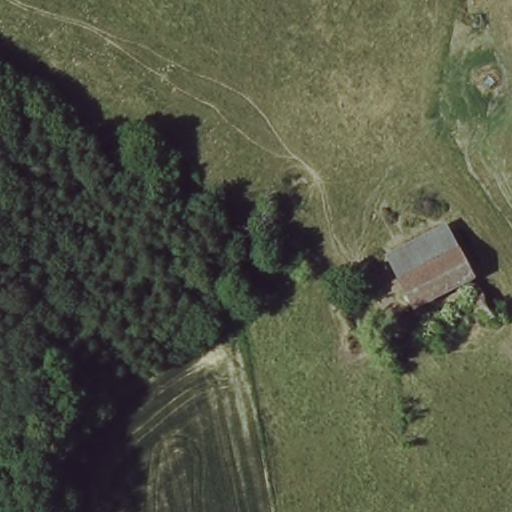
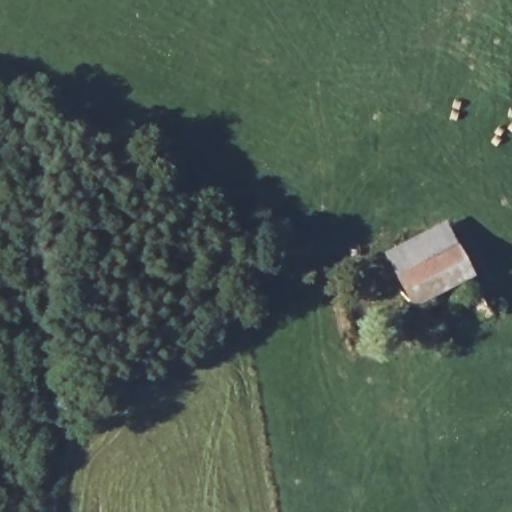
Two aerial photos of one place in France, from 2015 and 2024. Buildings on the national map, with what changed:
unchanged [(473,273),(418,296),(397,254),(450,229),(473,273)]
unchanged [(482,291),(491,307),(464,323),(455,307),(482,291)]

